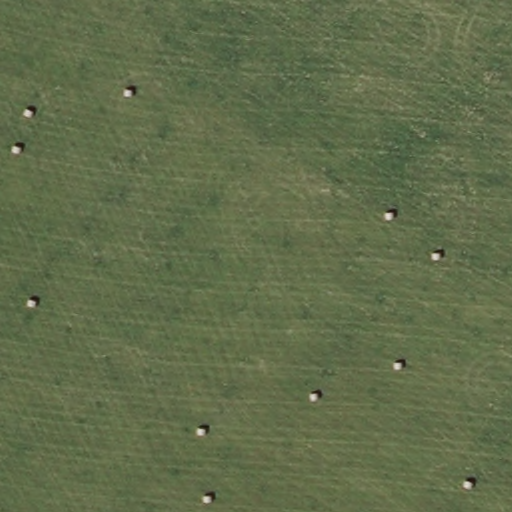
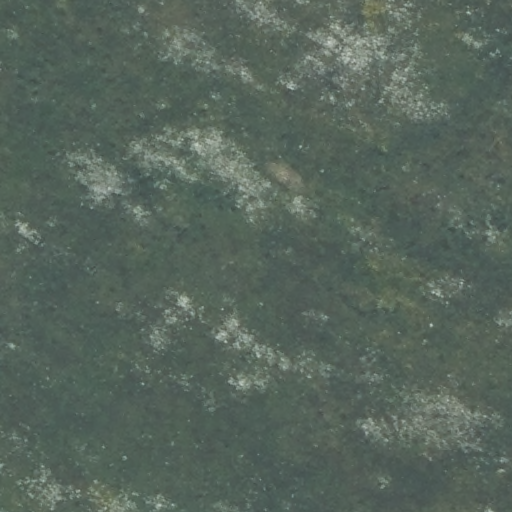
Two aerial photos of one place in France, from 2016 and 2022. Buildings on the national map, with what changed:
[]

